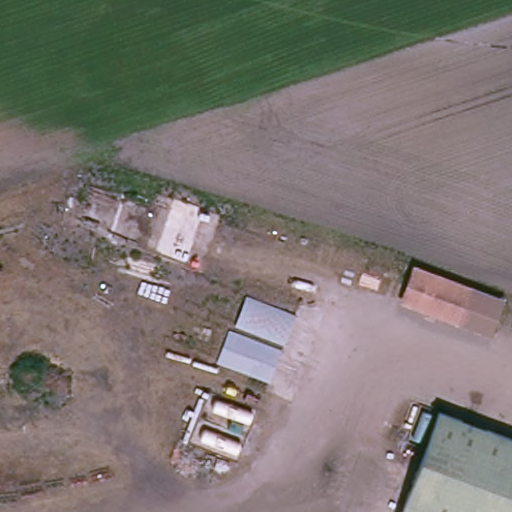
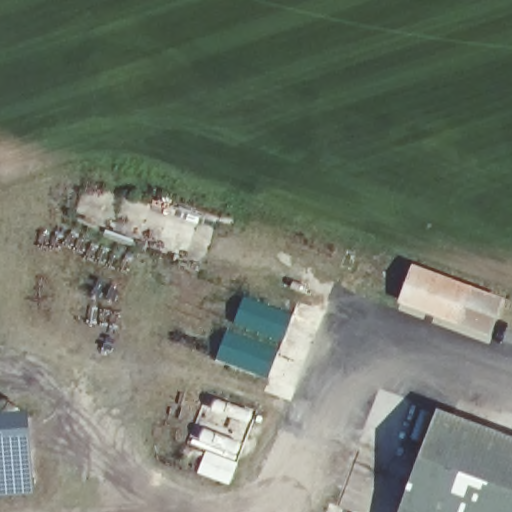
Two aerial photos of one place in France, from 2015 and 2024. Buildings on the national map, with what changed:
unchanged [(461,331),(395,308),(409,267),(475,292),(461,331)]
unchanged [(300,307),(289,337),(237,321),(249,292),(300,307)]
unchanged [(229,333),(284,350),(272,382),(219,360),(229,333)]
new [(0,406),(28,404),(34,486),(0,489),(0,406)]
unchanged [(512,466),(512,512),(400,512),(426,436),(512,466)]

